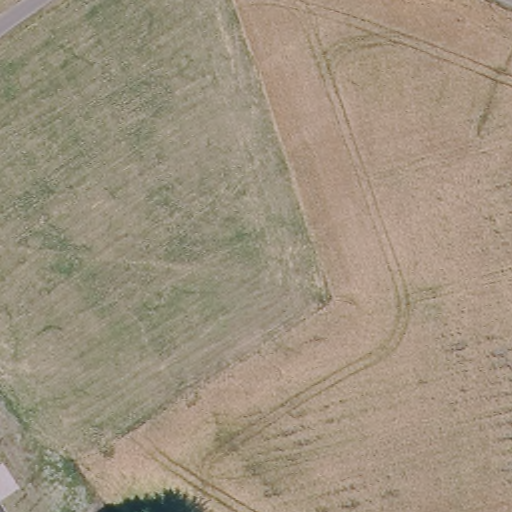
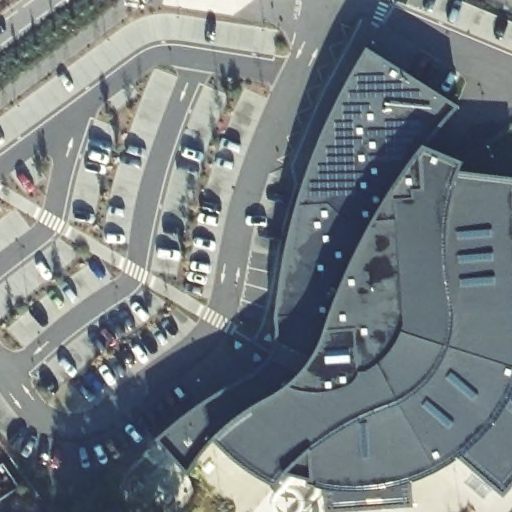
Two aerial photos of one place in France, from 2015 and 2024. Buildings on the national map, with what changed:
new [(240,466),(225,454),(210,440),(200,459),(187,475),(152,438),(187,411),(225,388),(258,371),(270,368),(283,346),(278,335),(275,324),(273,313),(273,302),(275,285),(279,274),(288,231),(300,190),(320,136),(337,97),(345,85),(366,48),(459,106),(425,146),(462,161),(455,180),(453,187),(512,182),(512,378),(506,396),(512,401),(512,486),(503,497),(457,457),(410,480),(412,507),(325,512),(324,512),(322,484),(285,475),(274,487),(257,477),(240,466)]

